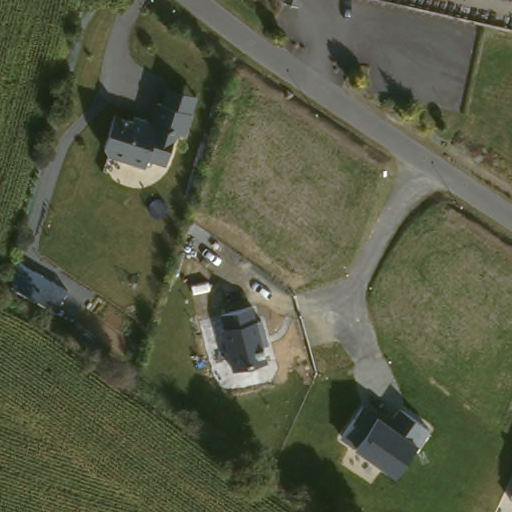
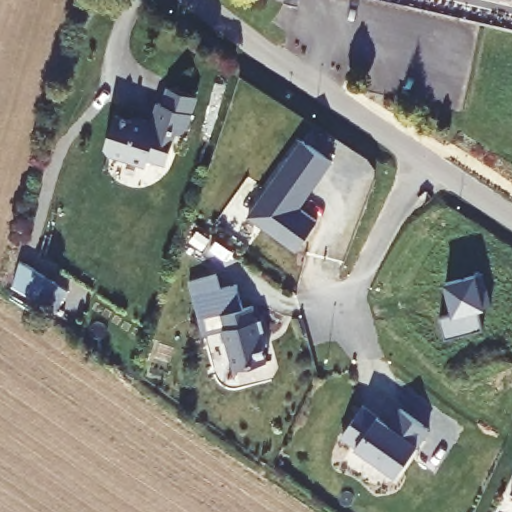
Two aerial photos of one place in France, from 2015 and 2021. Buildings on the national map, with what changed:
unchanged [(300,4),(288,0),(302,0),(300,4)]
unchanged [(139,125),(147,122),(155,124),(160,103),(165,104),(169,87),(199,94),(195,111),(190,133),(181,130),(174,163),(155,159),(153,167),(114,158),(110,152),(117,120),(139,125)]
new [(306,139),(336,160),(318,184),(316,182),(300,205),(321,220),(299,250),(251,215),(306,139)]
unchanged [(66,290),(56,312),(10,284),(20,262),(66,290)]
new [(219,271),(222,285),(239,281),(245,306),(223,307),(227,328),(203,335),(188,278),(219,271)]
new [(453,312),(446,282),(483,272),(491,304),(477,307),(483,328),(445,338),(439,316),(453,312)]
unchanged [(223,307),(259,306),(265,365),(235,372),(223,307)]
unchanged [(430,429),(418,448),(417,443),(396,476),(355,447),(356,446),(340,437),(362,404),(380,414),(377,415),(389,422),(400,407),(430,429)]

